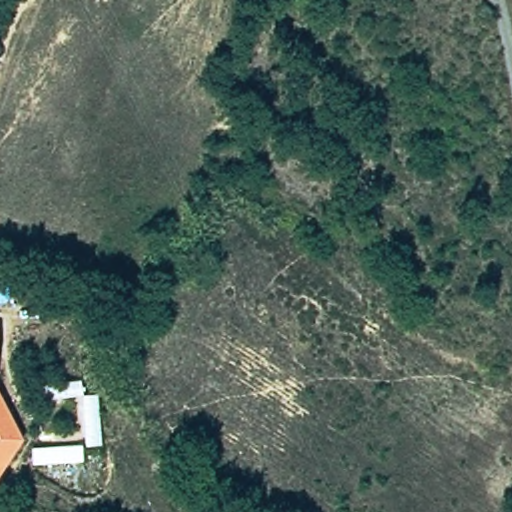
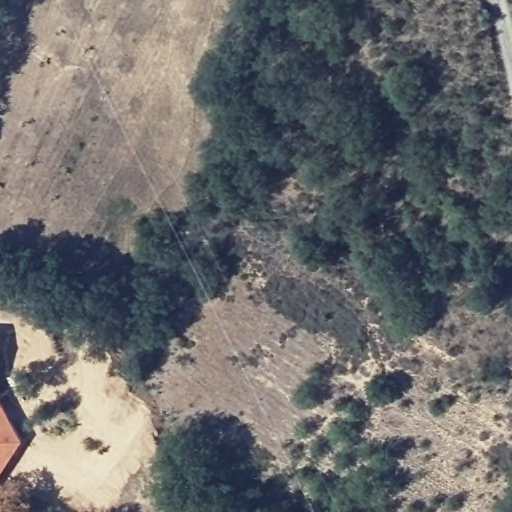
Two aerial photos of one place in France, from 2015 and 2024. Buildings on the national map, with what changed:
unchanged [(20,444),(0,474),(0,401),(20,444)]

